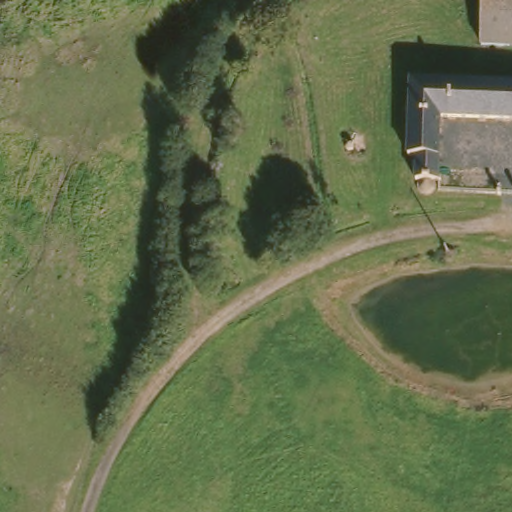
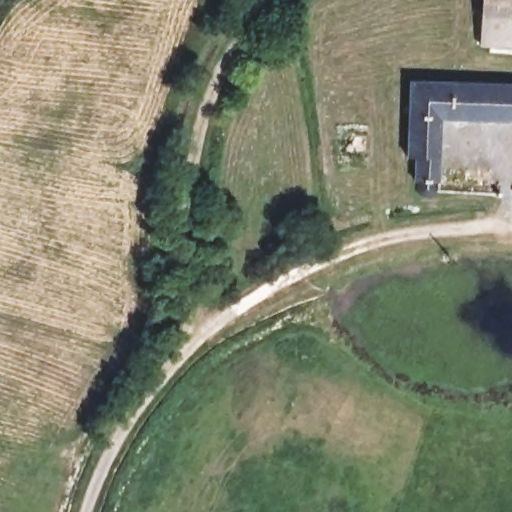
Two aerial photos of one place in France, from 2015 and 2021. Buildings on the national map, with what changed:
unchanged [(478,45),(479,0),(512,0),(512,46),(478,45)]
unchanged [(512,82),(512,119),(430,118),(428,180),(424,182),(423,188),(423,189),(423,190),(422,190),(422,191),(421,191),(421,192),(420,192),(419,192),(418,192),(417,192),(417,191),(416,190),(416,189),(415,189),(415,188),(416,182),(409,179),(411,156),(405,156),(404,155),(406,79),(512,82)]

